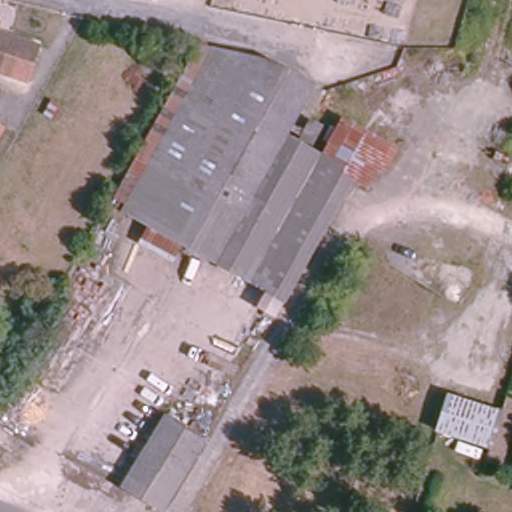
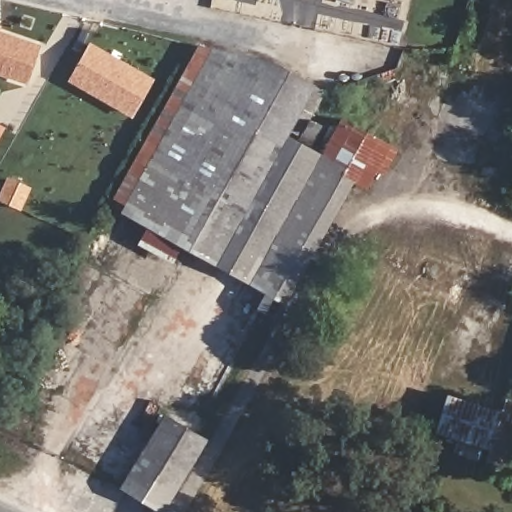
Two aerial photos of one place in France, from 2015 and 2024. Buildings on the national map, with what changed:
unchanged [(0,74),(0,32),(41,46),(29,85),(0,74)]
new [(68,81),(91,41),(155,78),(132,118),(68,81)]
unchanged [(209,50),(279,66),(331,96),(315,121),(313,126),(320,130),(309,152),(301,148),(230,272),(120,206),(209,50)]
unchanged [(301,148),(309,152),(320,130),(333,137),(345,119),(399,150),(385,176),(378,174),(367,189),(355,181),(286,303),(230,272),(301,148)]
unchanged [(0,124),(7,128),(0,142),(0,124)]
new [(16,378),(0,371),(0,349),(24,359),(16,378)]
unchanged [(448,395),(500,412),(506,398),(512,399),(512,443),(502,478),(482,476),(487,446),(437,432),(448,395)]
unchanged [(121,487),(165,415),(207,441),(166,512),(163,512),(121,487)]

